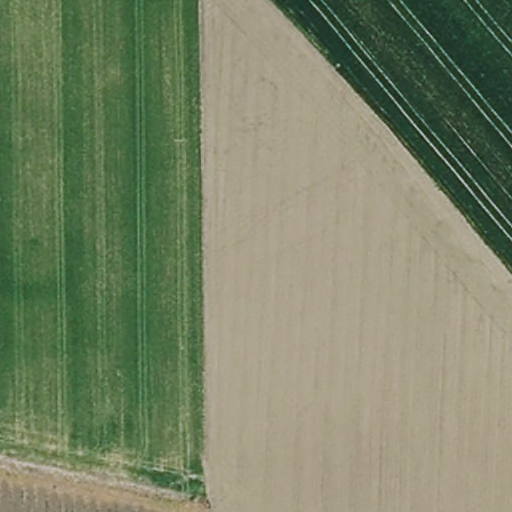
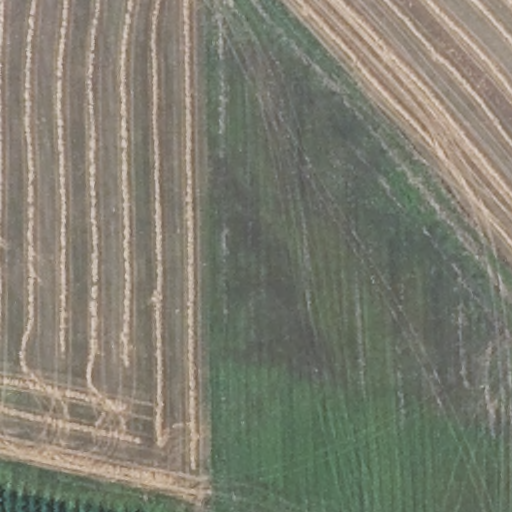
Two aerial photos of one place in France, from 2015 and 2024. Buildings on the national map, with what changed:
[]

